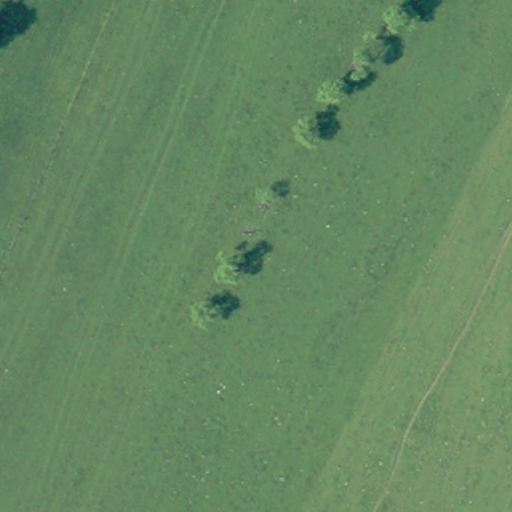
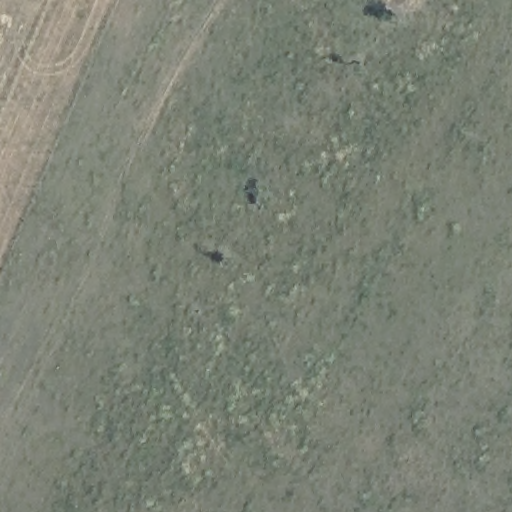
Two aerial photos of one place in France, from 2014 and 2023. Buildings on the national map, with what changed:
[]

